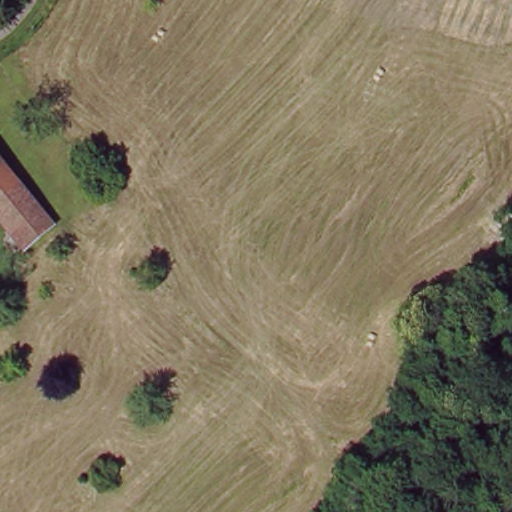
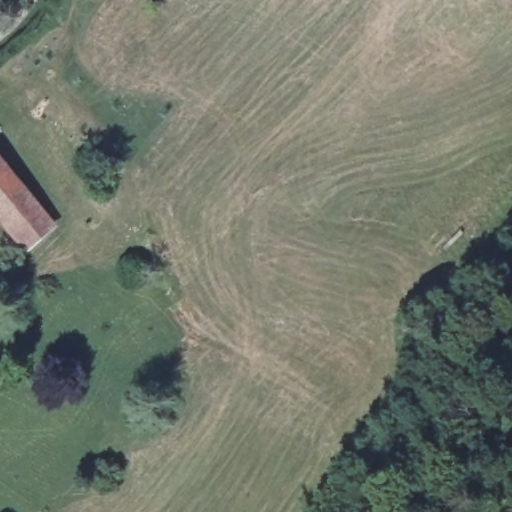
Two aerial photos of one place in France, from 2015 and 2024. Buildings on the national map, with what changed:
unchanged [(17,246),(0,225),(0,169),(45,225),(17,246)]

